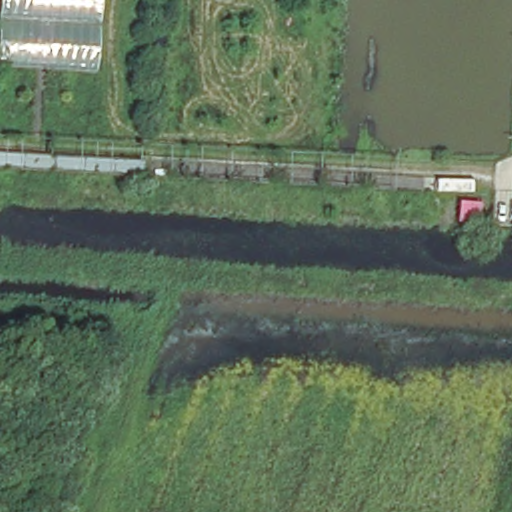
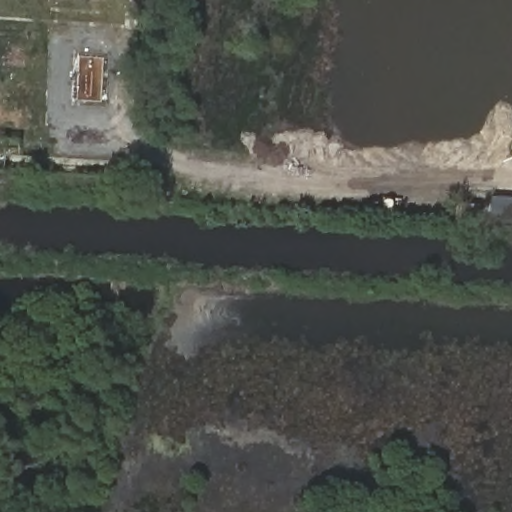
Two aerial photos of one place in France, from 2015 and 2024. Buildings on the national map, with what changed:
demolished [(0,69),(0,0),(100,0),(96,74),(0,69)]

